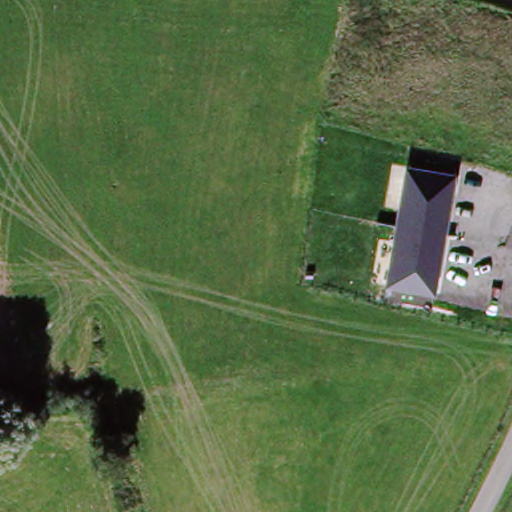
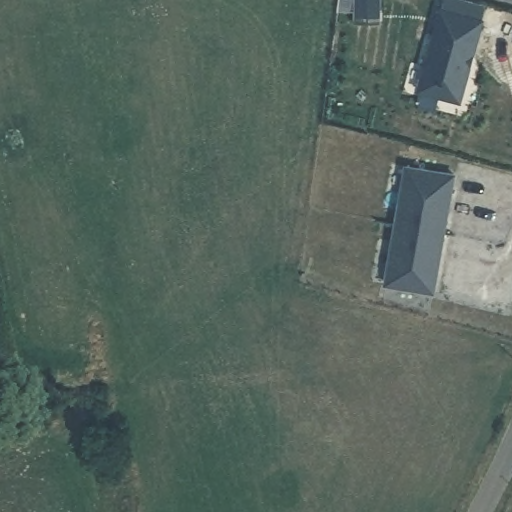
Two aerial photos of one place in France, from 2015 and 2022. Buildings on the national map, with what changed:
new [(487,3),(484,18),(462,102),(417,90),(444,0),(476,0),(487,3)]
unchanged [(453,174),(435,295),(383,285),(402,164),(453,174)]

